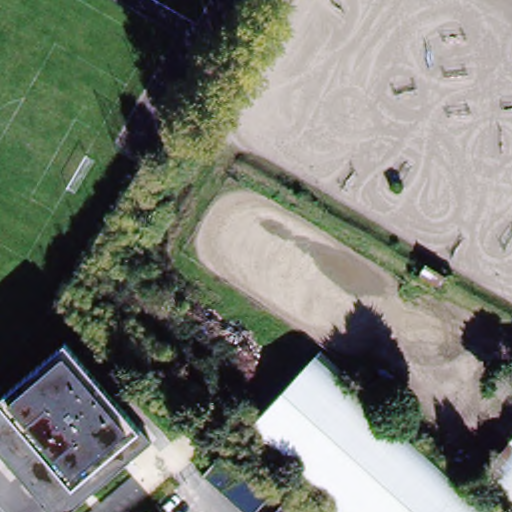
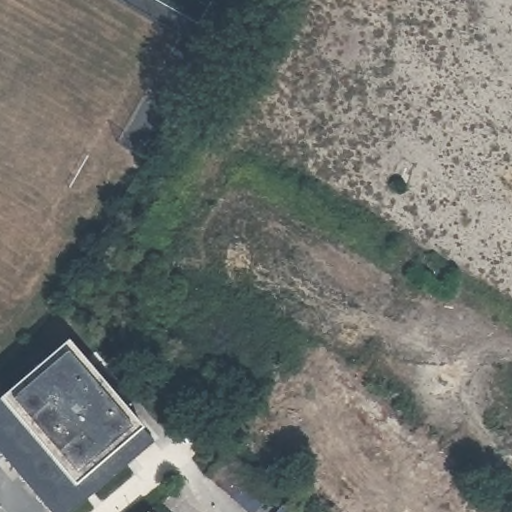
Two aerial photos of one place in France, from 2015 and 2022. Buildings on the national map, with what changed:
unchanged [(146,426),(158,439),(73,512),(57,512),(0,445),(0,400),(5,396),(71,339),(146,426)]
demolished [(505,512),(338,512),(249,432),(324,349),(505,512)]
unchanged [(258,512),(243,512),(170,447),(190,425),(271,498),(258,512)]
demolished [(483,472),(512,439),(512,499),(483,472)]
unchanged [(278,512),(282,508),(286,512),(278,512)]

